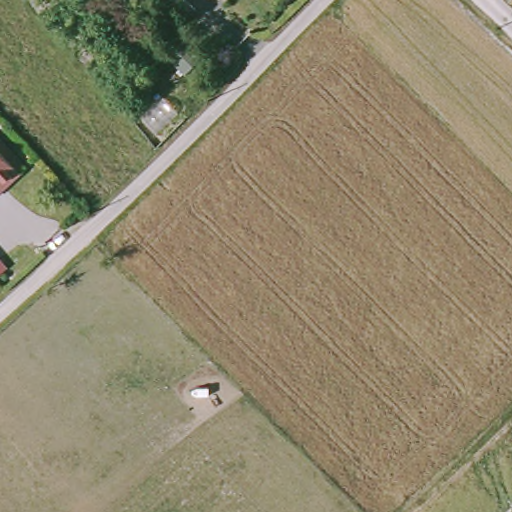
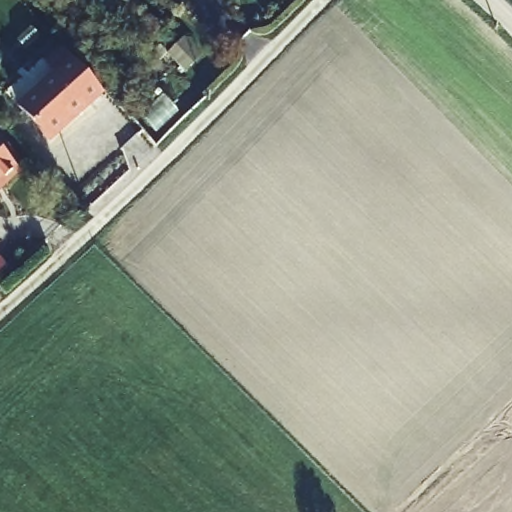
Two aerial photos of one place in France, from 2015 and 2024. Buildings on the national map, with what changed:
new [(44,66),(64,48),(105,94),(50,144),(17,107),(52,75),(44,66)]
unchanged [(0,192),(0,149),(23,173),(0,192)]
unchanged [(0,273),(0,258),(8,267),(0,273)]

